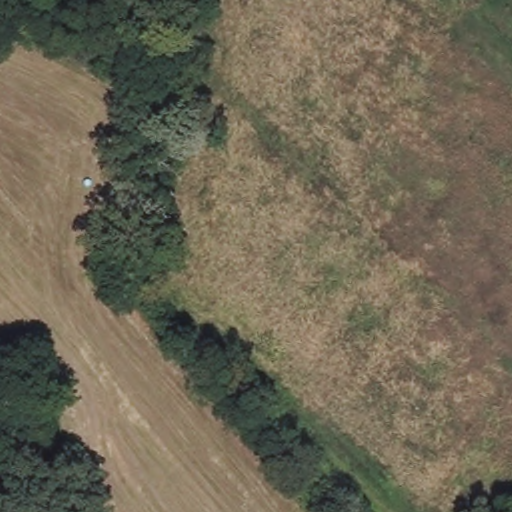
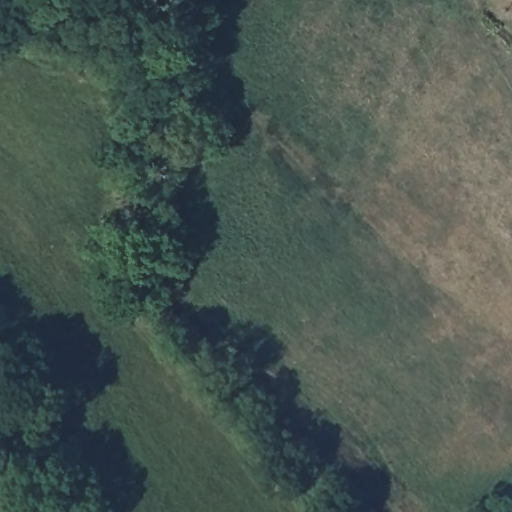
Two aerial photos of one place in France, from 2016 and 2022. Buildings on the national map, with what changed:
[]

